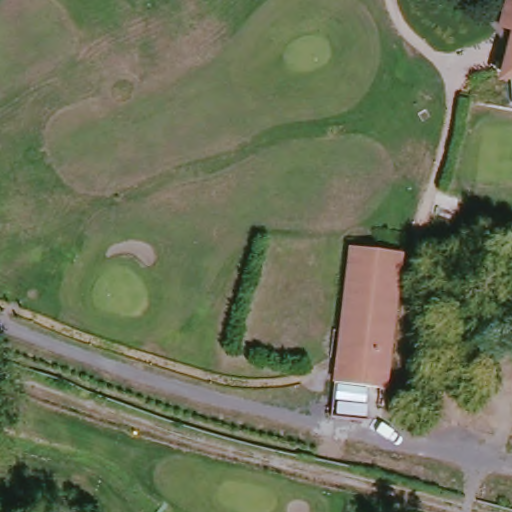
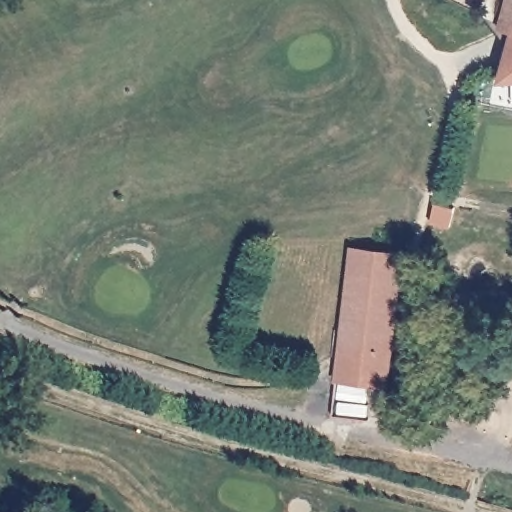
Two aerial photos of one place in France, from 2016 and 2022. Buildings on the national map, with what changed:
unchanged [(512,28),(497,23),(502,0),(512,0),(512,28)]
unchanged [(497,67),(512,28),(512,77),(509,77),(497,67)]
unchanged [(405,265),(389,397),(339,392),(354,259),(405,265)]

